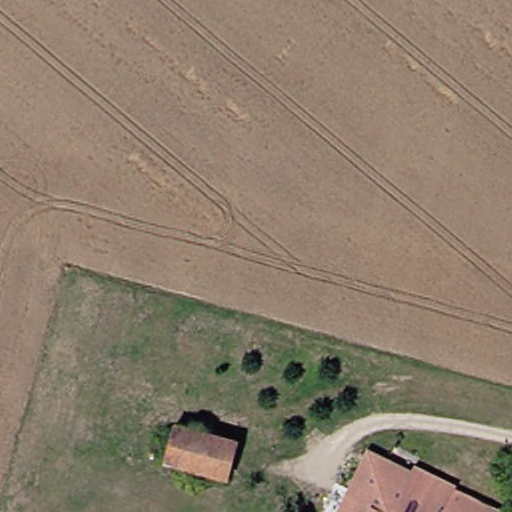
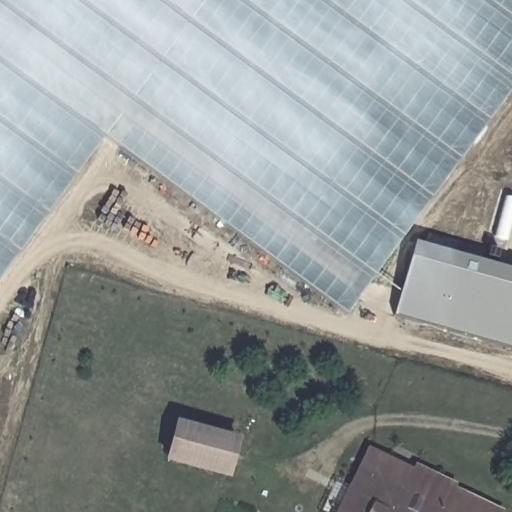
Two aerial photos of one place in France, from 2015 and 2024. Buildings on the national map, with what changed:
new [(347,314),(104,137),(0,279),(0,0),(512,0),(512,92),(347,314)]
new [(394,316),(414,243),(512,271),(512,349),(394,316)]
unchanged [(230,444),(220,478),(164,461),(174,427),(230,444)]
unchanged [(345,499),(372,448),(406,464),(409,458),(454,481),(451,487),(438,512),(333,512),(340,496),(345,499)]
unchanged [(499,512),(438,512),(451,487),(499,512)]

